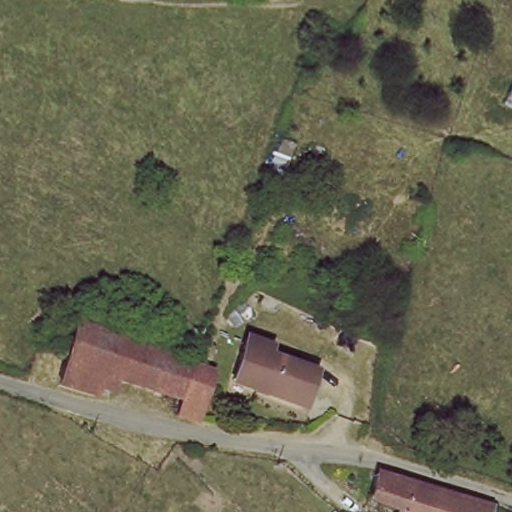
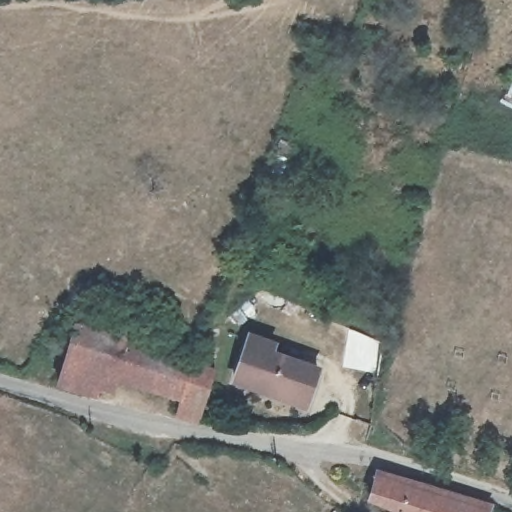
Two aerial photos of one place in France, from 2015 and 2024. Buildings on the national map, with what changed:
unchanged [(73,318),(195,360),(215,366),(199,413),(176,410),(182,392),(98,365),(88,390),(48,381),(73,318)]
unchanged [(231,381),(245,340),(269,347),(266,356),(314,371),(303,403),(231,381)]
unchanged [(405,498),(371,490),(377,472),(487,498),(483,512),(402,512),(405,498)]

